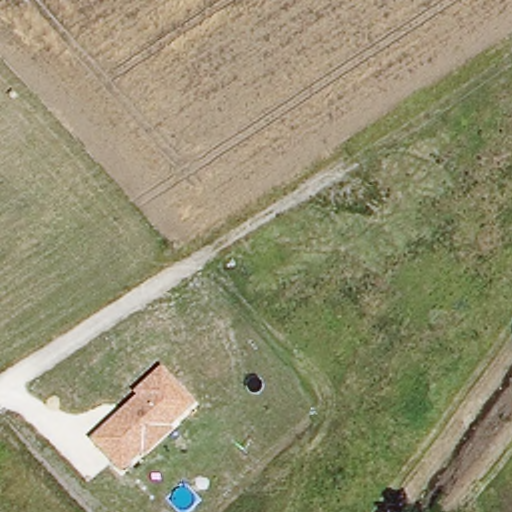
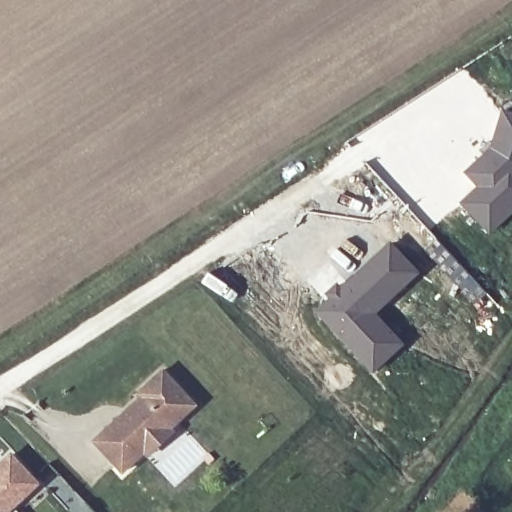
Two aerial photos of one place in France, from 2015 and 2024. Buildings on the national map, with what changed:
new [(512,112),(512,213),(488,234),(462,203),(477,189),(463,173),(488,149),(501,109),(512,112)]
new [(333,289),(390,240),(421,273),(377,314),(406,344),(372,375),(312,311),(333,289)]
unchanged [(197,407),(122,475),(92,440),(137,400),(132,397),(163,370),(197,407)]
new [(37,484),(8,512),(0,512),(0,465),(11,456),(37,484)]

